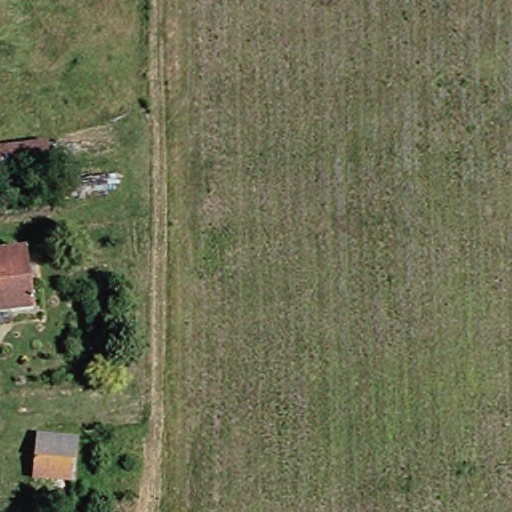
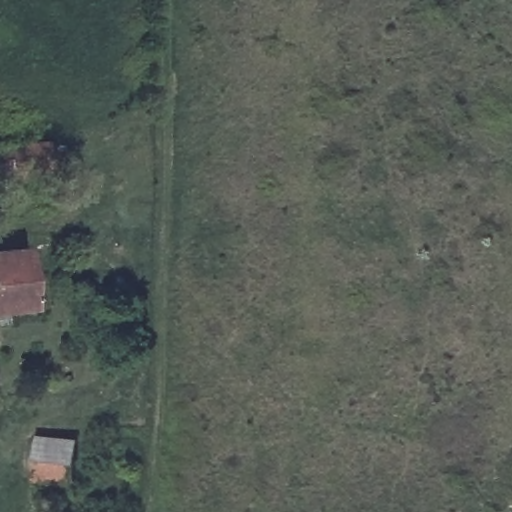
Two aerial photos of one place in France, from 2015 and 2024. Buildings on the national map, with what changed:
unchanged [(0,148),(53,142),(58,172),(1,179),(0,171),(0,148)]
unchanged [(38,307),(0,313),(0,252),(30,248),(38,307)]
unchanged [(39,436),(77,436),(77,476),(40,476),(39,436)]

